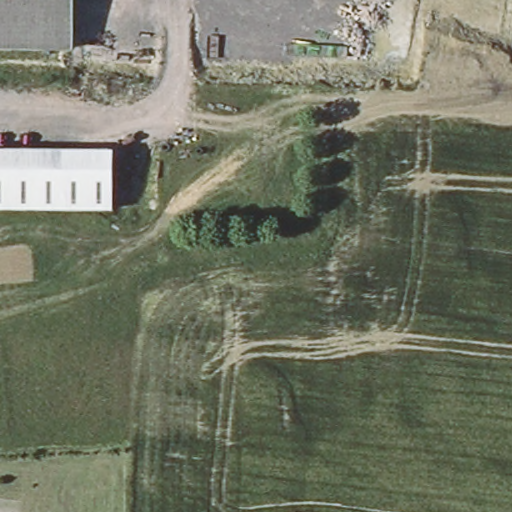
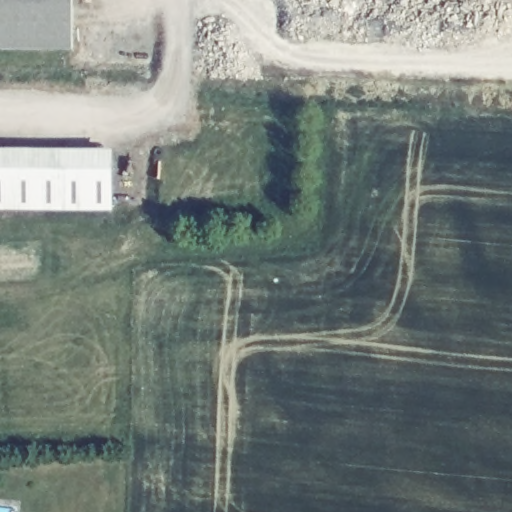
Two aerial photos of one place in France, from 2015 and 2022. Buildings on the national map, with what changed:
unchanged [(74,46),(0,45),(0,0),(74,0),(74,46)]
unchanged [(108,212),(0,211),(0,151),(108,152),(108,212)]

